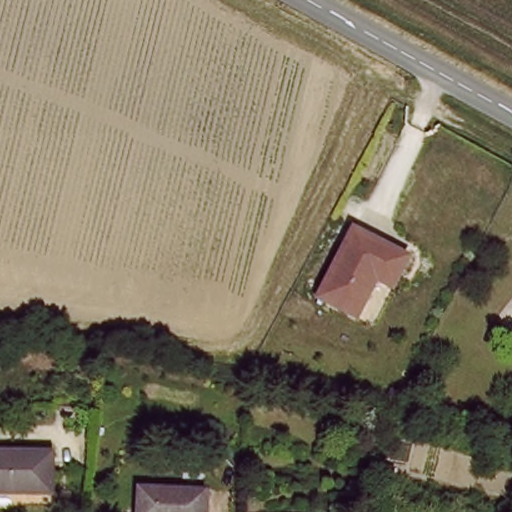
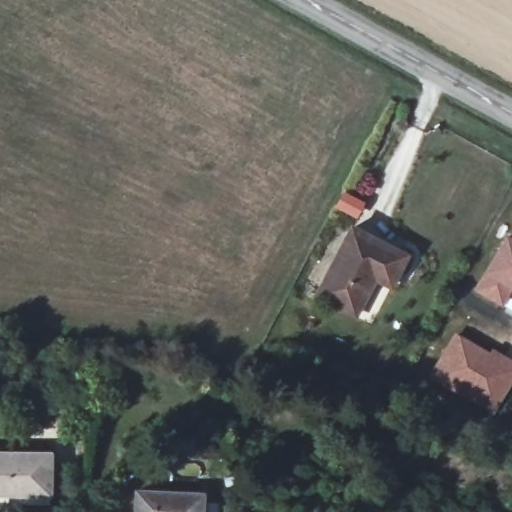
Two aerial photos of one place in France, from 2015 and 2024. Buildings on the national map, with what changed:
unchanged [(357,288),(337,312),(307,286),(358,228),(400,267),(378,292),(371,300),(357,288)]
new [(512,238),(512,292),(502,309),(471,289),(505,234),(512,238)]
new [(490,351),(492,347),(512,359),(512,383),(492,417),(425,379),(454,331),(490,351)]
unchanged [(56,455),(51,504),(0,502),(0,453),(56,455)]
unchanged [(137,492),(199,498),(198,512),(135,512),(137,492)]

